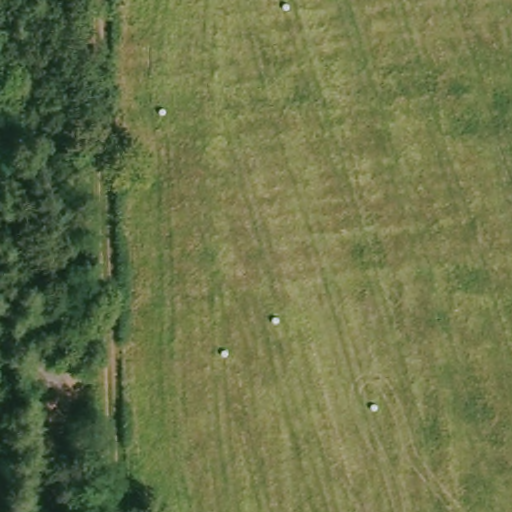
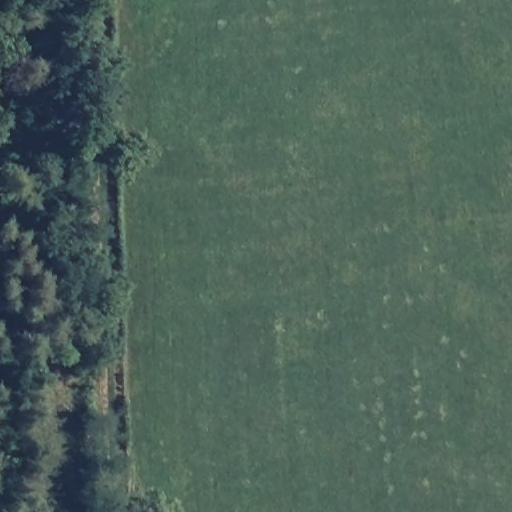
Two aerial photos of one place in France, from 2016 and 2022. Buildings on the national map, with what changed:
unchanged [(38,345),(61,345),(62,365),(38,365),(38,345)]

